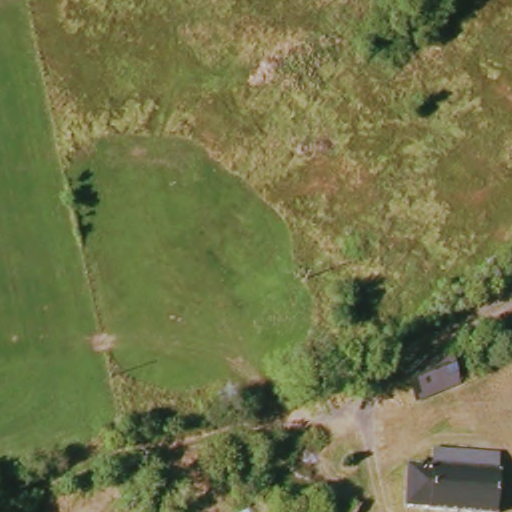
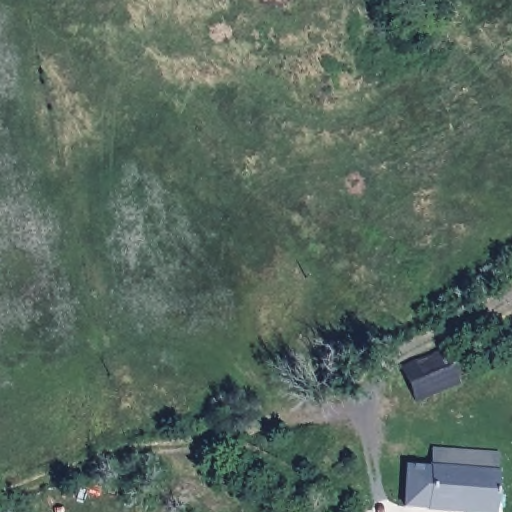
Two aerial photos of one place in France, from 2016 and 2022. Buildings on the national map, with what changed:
unchanged [(468,383),(427,397),(414,365),(457,352),(468,383)]
unchanged [(402,509),(405,469),(428,471),(430,445),(497,453),(491,512),(435,512),(402,509)]

